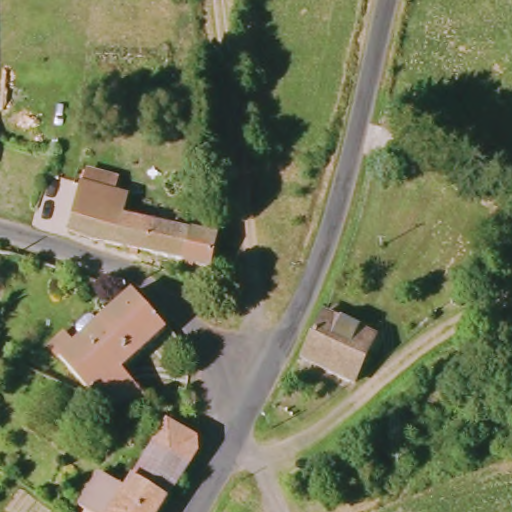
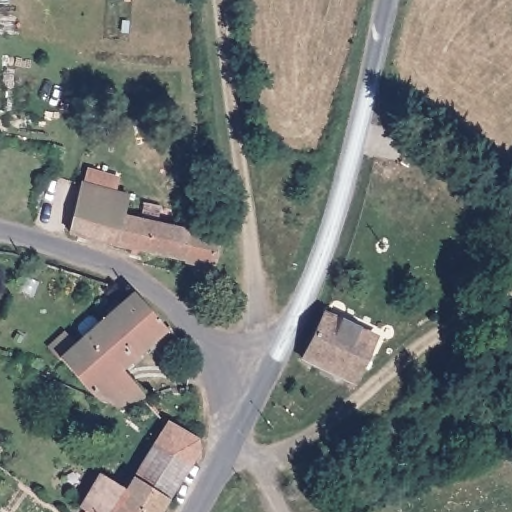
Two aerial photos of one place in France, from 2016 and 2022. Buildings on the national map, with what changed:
unchanged [(173,262),(66,233),(78,188),(85,190),(89,174),(120,183),(116,197),(122,200),(117,213),(181,231),(211,238),(203,269),(173,262)]
unchanged [(49,342),(65,330),(74,342),(84,334),(78,327),(78,322),(88,314),(93,315),(99,323),(132,295),(163,334),(121,371),(144,399),(118,404),(93,394),(59,354),(49,342)]
unchanged [(305,357),(323,311),(372,332),(353,376),(305,357)]
unchanged [(98,476),(126,491),(164,422),(197,441),(154,512),(91,512),(80,505),(98,476)]

